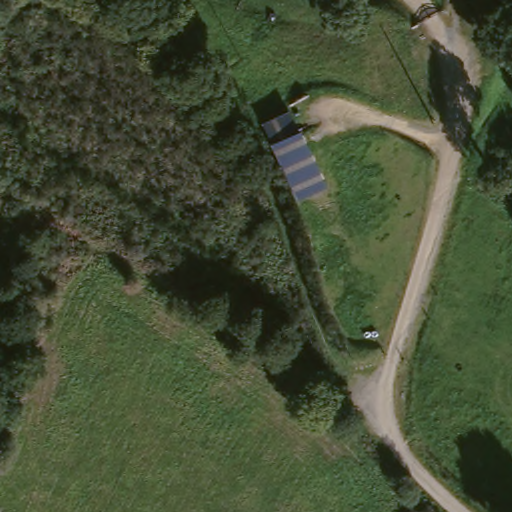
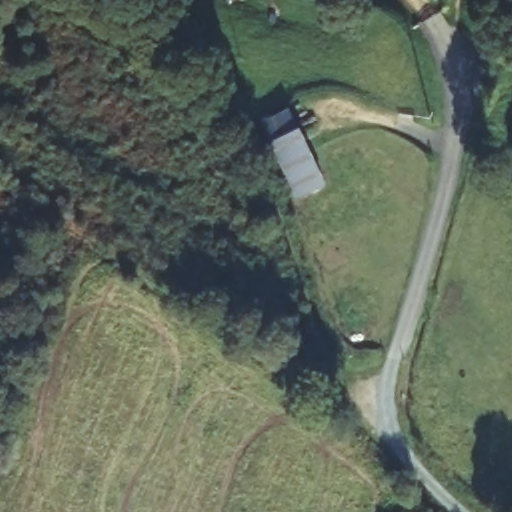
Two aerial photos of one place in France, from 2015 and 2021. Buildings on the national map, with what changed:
unchanged [(251,121),(284,106),(327,186),(293,201),(251,121)]

